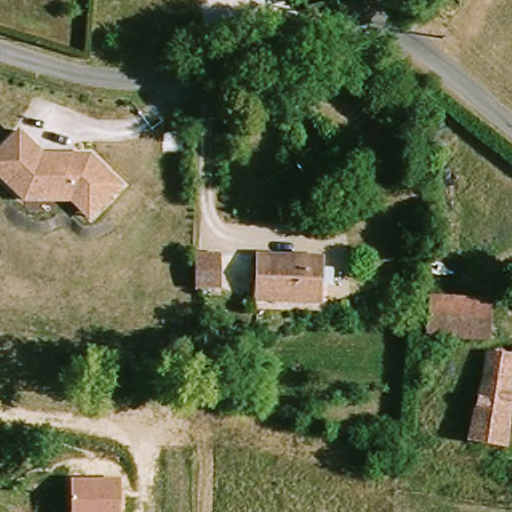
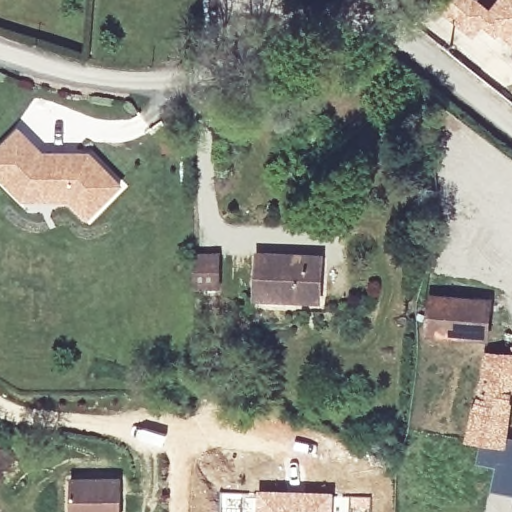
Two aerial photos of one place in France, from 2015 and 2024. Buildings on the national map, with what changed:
new [(489,7),(495,0),(512,0),(512,49),(483,28),(473,39),(442,12),(453,0),(480,0),(489,7)]
unchanged [(42,155),(89,156),(119,188),(88,222),(66,202),(25,203),(0,179),(0,149),(17,129),(42,155)]
unchanged [(214,254),(215,287),(194,288),(194,274),(193,254),(214,254)]
unchanged [(321,262),(320,305),(256,303),(257,260),(321,262)]
unchanged [(427,334),(431,298),(491,303),(488,339),(427,334)]
unchanged [(481,381),(483,359),(510,361),(500,450),(463,445),(481,381)]
unchanged [(121,479),(121,512),(71,512),(71,479),(121,479)]
new [(334,490),(333,512),(258,512),(258,488),(334,490)]

